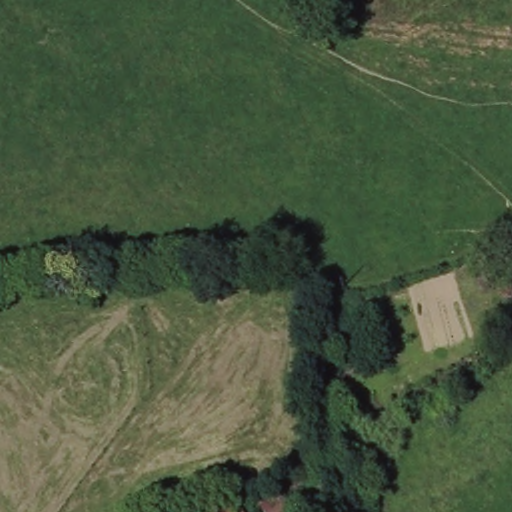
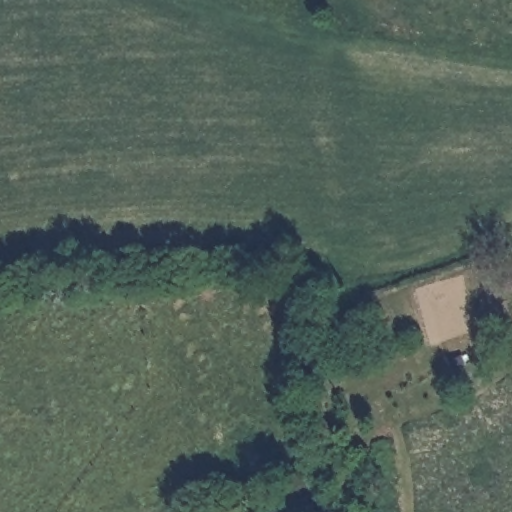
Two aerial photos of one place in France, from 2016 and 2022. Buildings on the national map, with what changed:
unchanged [(238,512),(231,512),(235,508),(238,512)]

